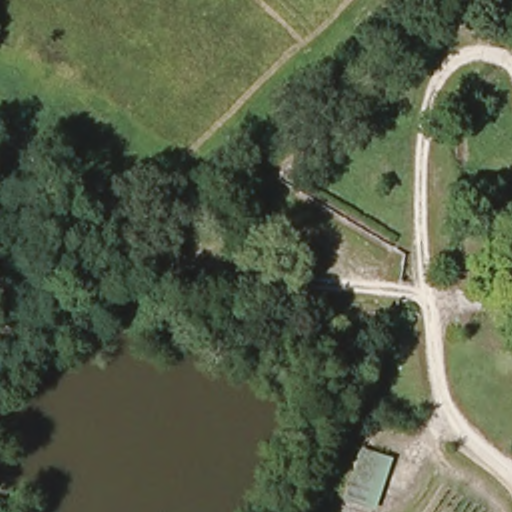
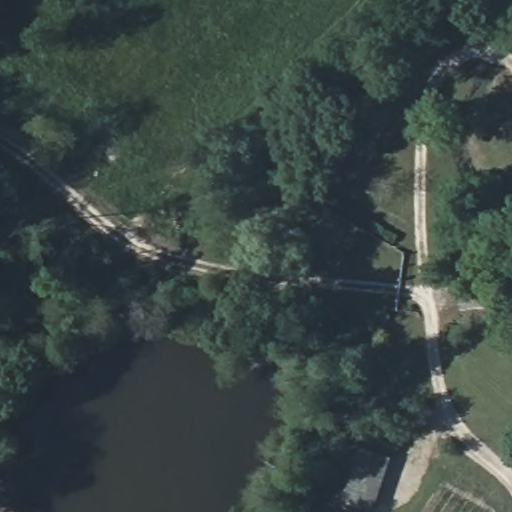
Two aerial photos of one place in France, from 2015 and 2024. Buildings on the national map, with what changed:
unchanged [(375,512),(372,512),(343,503),(360,449),(392,459),(375,512)]

